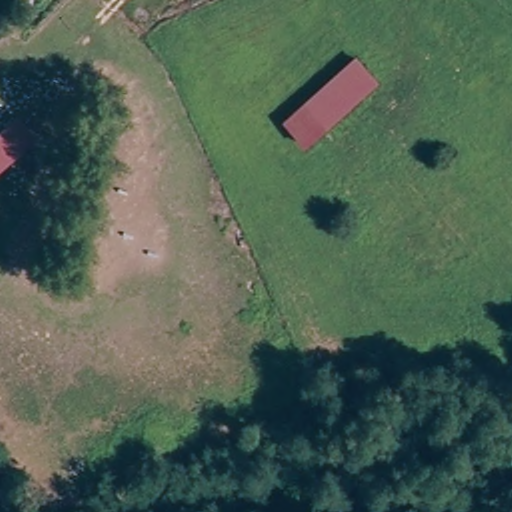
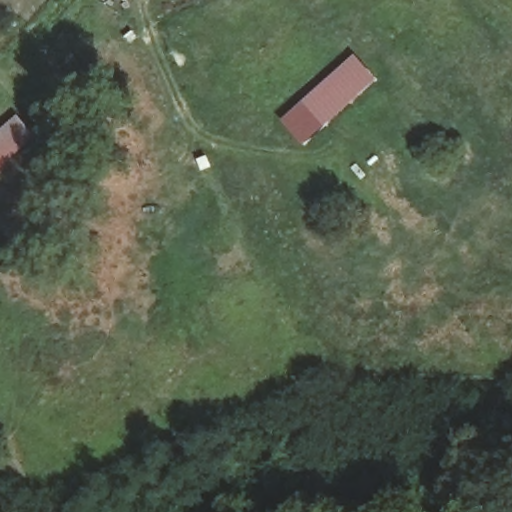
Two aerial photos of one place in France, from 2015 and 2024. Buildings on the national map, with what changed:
unchanged [(381,69),(314,127),(295,104),(362,47),(381,69)]
unchanged [(0,132),(13,121),(33,143),(0,171),(0,132)]

